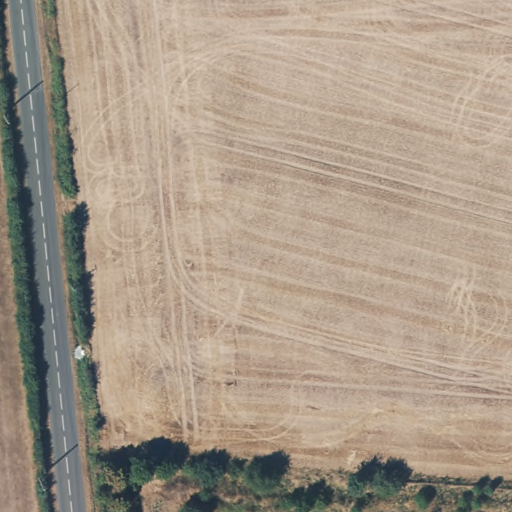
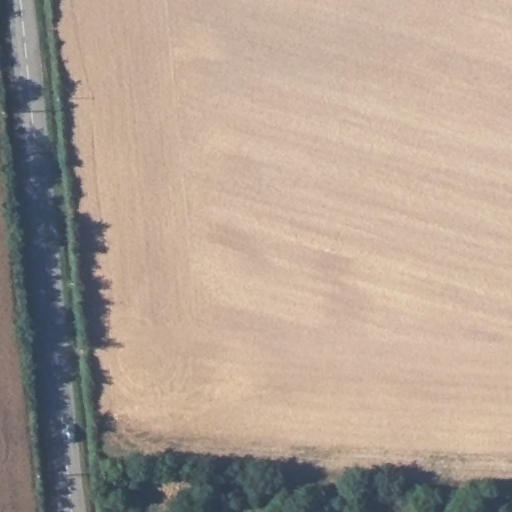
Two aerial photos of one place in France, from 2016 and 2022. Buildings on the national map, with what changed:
[]

